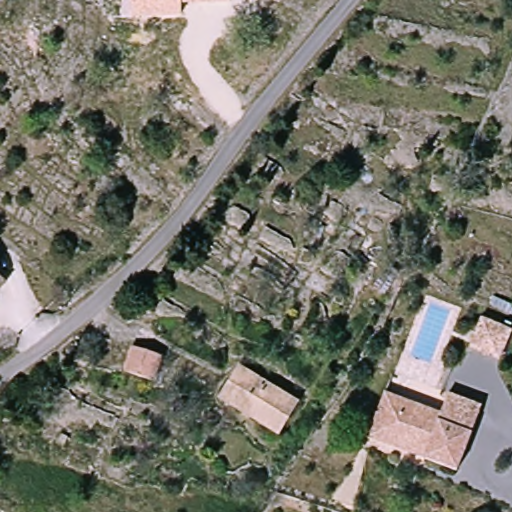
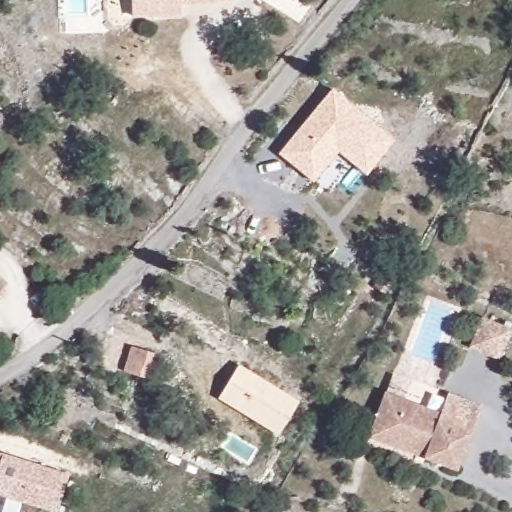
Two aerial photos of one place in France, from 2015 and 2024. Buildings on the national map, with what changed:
unchanged [(183,5),(183,16),(131,17),(132,0),(230,0),(230,2),(183,5)]
new [(333,89),(396,140),(366,176),(339,152),(314,182),(279,154),(333,89)]
unchanged [(0,300),(0,275),(13,288),(0,300)]
unchanged [(475,349),(488,320),(512,330),(512,345),(504,362),(475,349)]
unchanged [(165,358),(155,382),(123,370),(133,346),(165,358)]
unchanged [(281,434),(224,398),(245,365),(302,400),(281,434)]
unchanged [(373,438),(376,430),(390,394),(446,416),(454,396),(470,402),(486,408),(461,472),(428,460),(386,443),(373,438)]
new [(68,474),(56,512),(53,512),(0,496),(0,462),(3,453),(68,474)]

